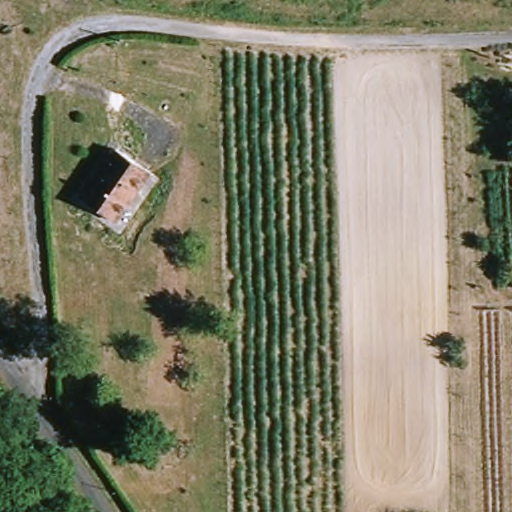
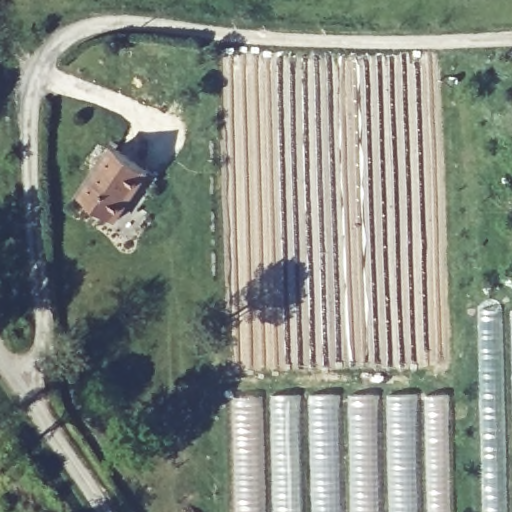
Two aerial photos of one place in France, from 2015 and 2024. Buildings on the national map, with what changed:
unchanged [(119,225),(84,206),(112,155),(143,172),(147,174),(144,180),(119,225)]
new [(512,311),(512,512),(484,512),(480,311),(512,311)]
new [(233,396),(446,396),(449,512),(236,512),(233,396)]

